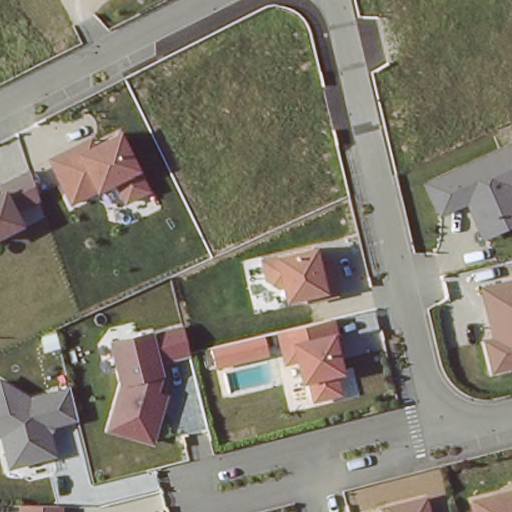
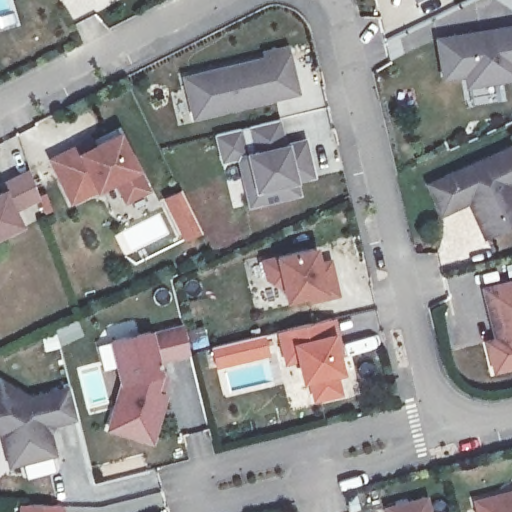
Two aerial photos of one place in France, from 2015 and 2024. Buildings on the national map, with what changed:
new [(413,0),(416,0),(413,1),(413,0)]
new [(512,78),(467,85),(465,74),(442,77),(436,39),(512,26),(512,78)]
new [(265,59),(263,52),(286,47),(295,87),(274,92),(275,97),(193,116),(184,77),(265,59)]
new [(246,190),(238,156),(221,160),(215,134),(278,119),(285,145),(304,140),(308,160),(312,175),(307,176),(294,180),(297,193),(270,200),(250,204),(246,190)]
unchanged [(128,200),(118,180),(74,201),(56,164),(122,133),(150,189),(128,200)]
unchanged [(468,205),(441,218),(424,182),(512,144),(512,227),(485,240),(468,205)]
unchanged [(41,199),(17,210),(23,226),(0,237),(0,180),(29,168),(41,199)]
unchanged [(316,245),(321,270),(332,267),(339,297),(308,305),(306,299),(285,302),(283,288),(277,289),(263,281),(259,257),(316,245)]
unchanged [(483,338),(493,336),(481,283),(512,277),(512,369),(492,374),(483,338)]
unchanged [(345,350),(340,351),(345,373),(340,374),(344,395),(314,402),(311,381),(302,385),(296,363),(286,365),(278,331),(336,316),(345,350)]
unchanged [(192,355),(161,362),(163,375),(171,377),(155,444),(107,431),(120,382),(110,341),(182,323),(192,355)]
unchanged [(262,334),(266,356),(213,367),(209,345),(262,334)]
unchanged [(30,395),(68,386),(76,421),(52,427),(50,431),(56,457),(6,469),(0,438),(0,378),(30,395)]
unchanged [(512,512),(477,512),(473,497),(512,488),(512,512)]
unchanged [(387,510),(424,500),(427,512),(388,512),(387,510)]
unchanged [(63,512),(23,512),(22,505),(63,505),(63,512)]

